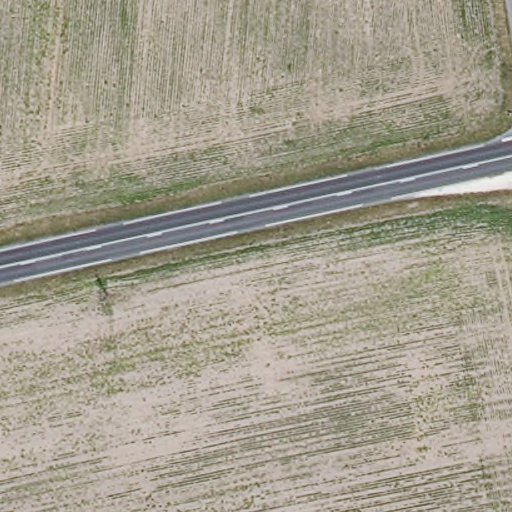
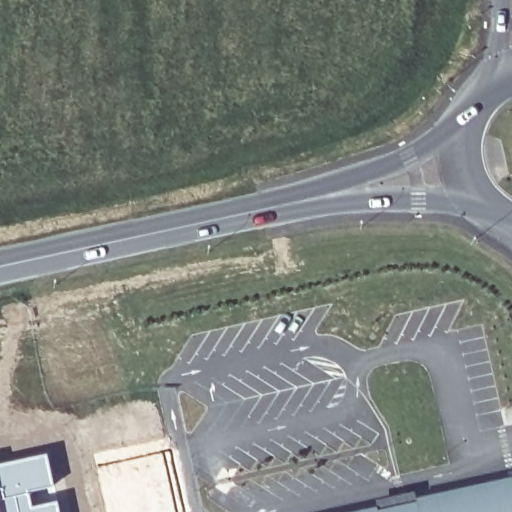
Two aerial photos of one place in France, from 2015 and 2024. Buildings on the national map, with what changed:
new [(54,485),(31,490),(34,502),(59,497),(62,512),(0,512),(0,460),(48,450),(54,485)]
new [(357,512),(512,477),(512,512),(357,512)]

